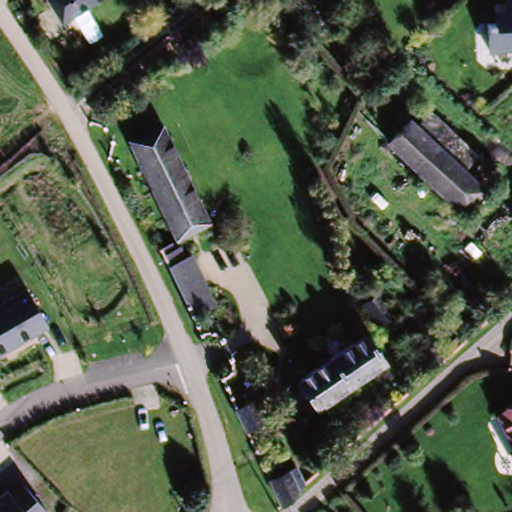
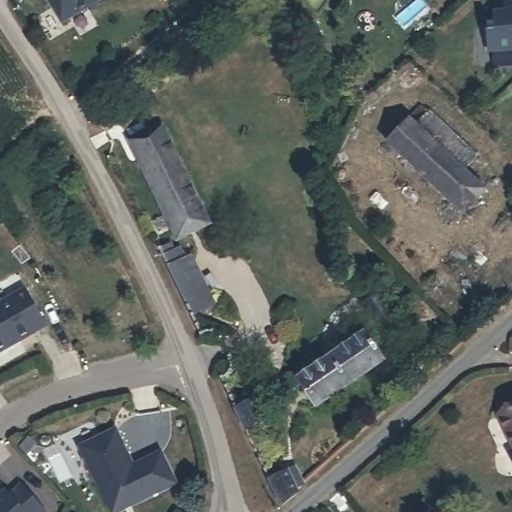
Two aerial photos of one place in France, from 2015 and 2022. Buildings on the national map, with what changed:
unchanged [(61,26),(47,0),(106,0),(66,22),(61,26)]
unchanged [(493,22),(494,3),(504,2),(507,0),(512,0),(512,53),(488,55),(486,22),(493,22)]
unchanged [(431,111),(482,155),(469,175),(417,127),(431,111)]
unchanged [(464,218),(386,146),(408,119),(484,190),(464,218)]
unchanged [(206,224),(181,240),(141,175),(128,152),(151,137),(206,224)]
unchanged [(182,262),(189,277),(196,272),(223,312),(203,322),(169,268),(182,262)]
unchanged [(0,354),(0,300),(27,285),(50,327),(0,354)]
unchanged [(412,311),(396,322),(378,299),(384,295),(393,290),(412,311)]
unchanged [(377,357),(314,402),(297,380),(358,333),(377,357)]
unchanged [(499,438),(504,436),(489,402),(512,392),(512,456),(508,457),(499,438)]
unchanged [(259,401),(271,428),(249,438),(238,412),(259,401)]
new [(113,431),(131,468),(140,465),(139,463),(167,450),(183,482),(119,512),(108,512),(78,448),(113,431)]
unchanged [(312,455),(322,474),(304,492),(291,468),(312,455)]
unchanged [(8,490),(11,492),(21,482),(50,511),(49,512),(0,512),(0,496),(8,490)]
unchanged [(353,511),(354,512),(352,512),(353,511)]

